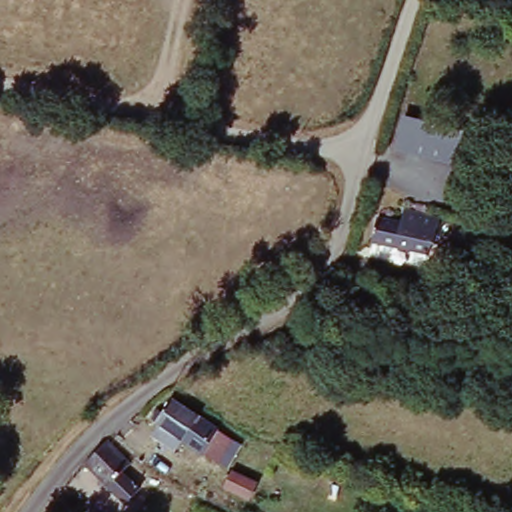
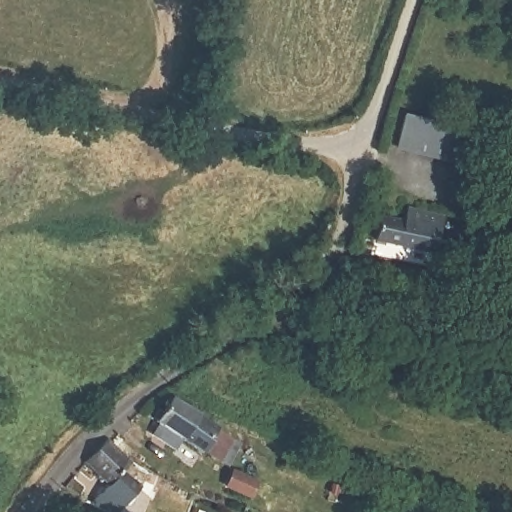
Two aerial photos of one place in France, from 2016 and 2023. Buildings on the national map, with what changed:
unchanged [(400,120),(462,135),(453,171),(391,154),(400,120)]
unchanged [(438,216),(430,252),(376,239),(382,216),(404,220),(407,209),(438,216)]
unchanged [(227,452),(235,457),(229,467),(206,451),(204,454),(156,423),(174,401),(219,429),(236,439),(227,452)]
unchanged [(119,474),(136,489),(124,503),(81,465),(93,453),(101,442),(106,446),(126,465),(119,474)]

